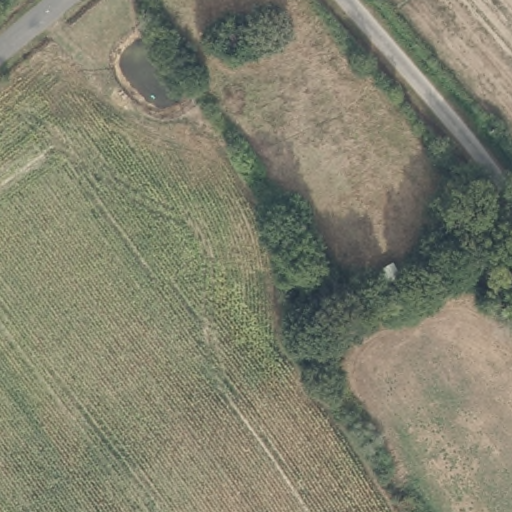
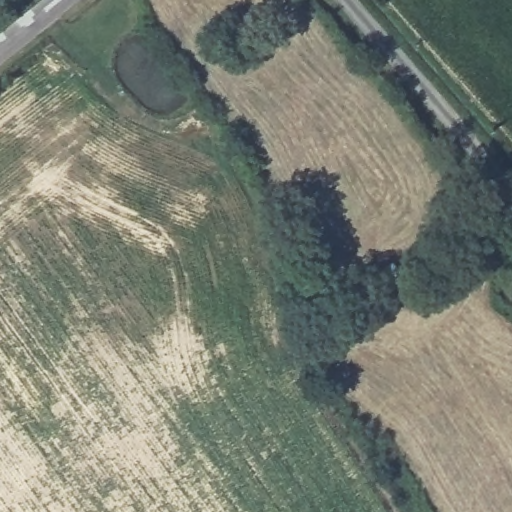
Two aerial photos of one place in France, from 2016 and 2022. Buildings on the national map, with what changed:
unchanged [(257,42),(232,59),(221,44),(247,27),(257,42)]
unchanged [(447,245),(427,263),(419,252),(438,235),(447,245)]

